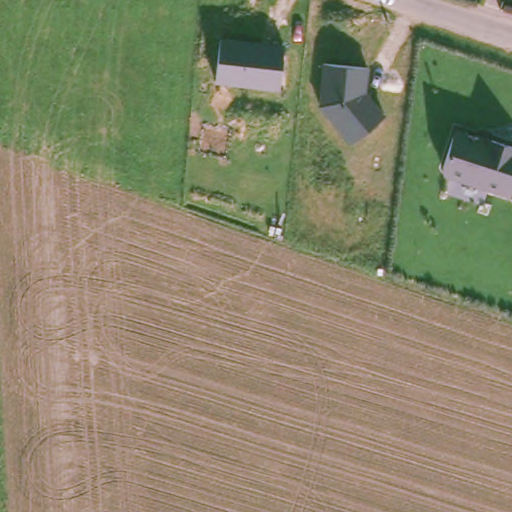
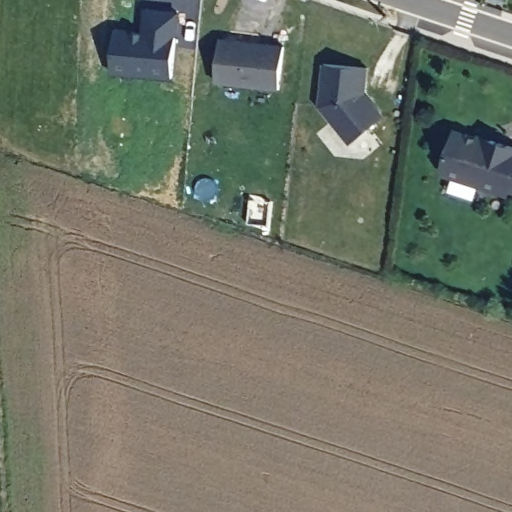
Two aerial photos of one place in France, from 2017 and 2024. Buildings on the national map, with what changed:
new [(173,78),(112,72),(117,27),(142,29),(145,6),(180,10),(173,78)]
unchanged [(220,37),(285,45),(279,90),(215,82),(220,37)]
unchanged [(368,68),(365,91),(385,115),(348,144),(318,105),(323,63),(368,68)]
unchanged [(442,170),(452,130),(512,150),(512,192),(511,192),(510,196),(444,176),(442,170)]

